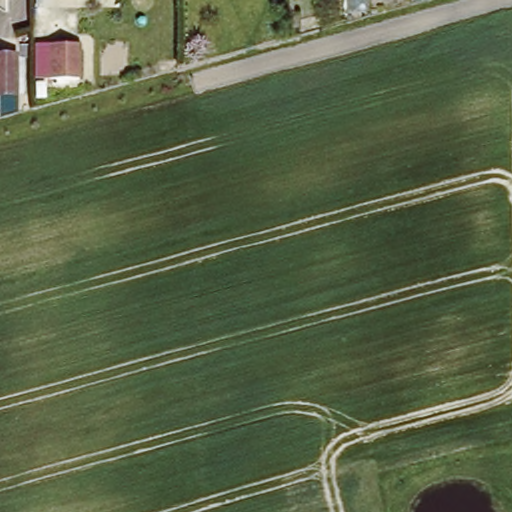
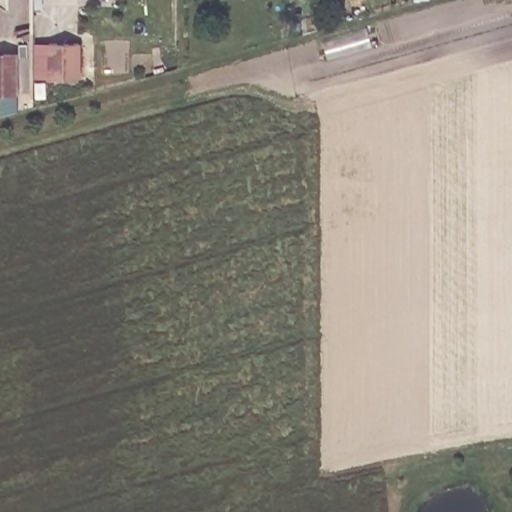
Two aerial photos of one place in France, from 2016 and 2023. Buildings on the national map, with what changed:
unchanged [(78,81),(48,81),(47,46),(77,46),(78,81)]
unchanged [(15,54),(15,91),(0,91),(0,53),(15,54)]

